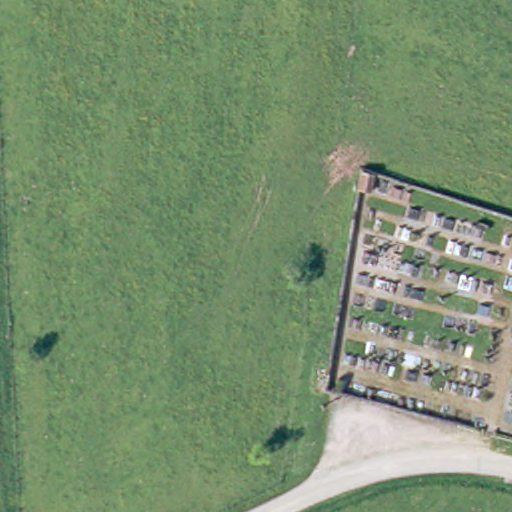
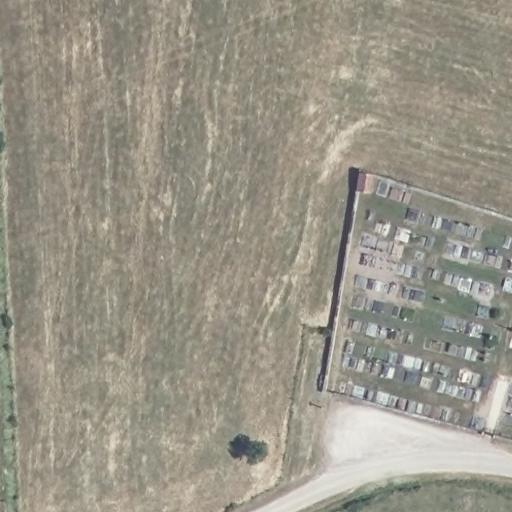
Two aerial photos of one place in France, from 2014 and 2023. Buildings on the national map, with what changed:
[]

